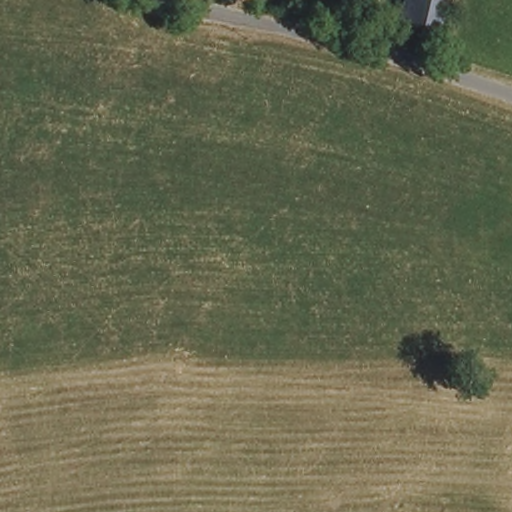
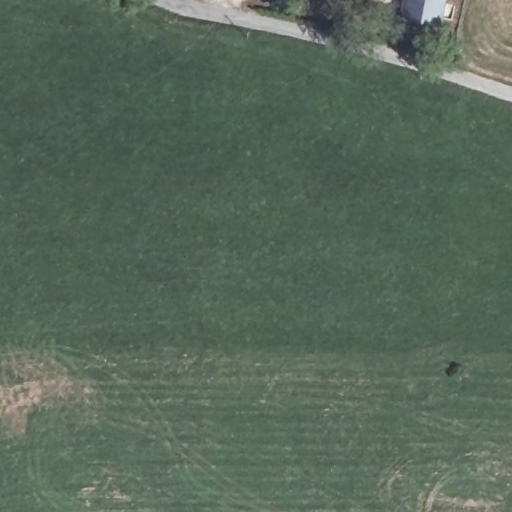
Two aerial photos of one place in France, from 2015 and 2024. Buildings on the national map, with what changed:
unchanged [(407,18),(412,0),(445,0),(439,27),(407,18)]

